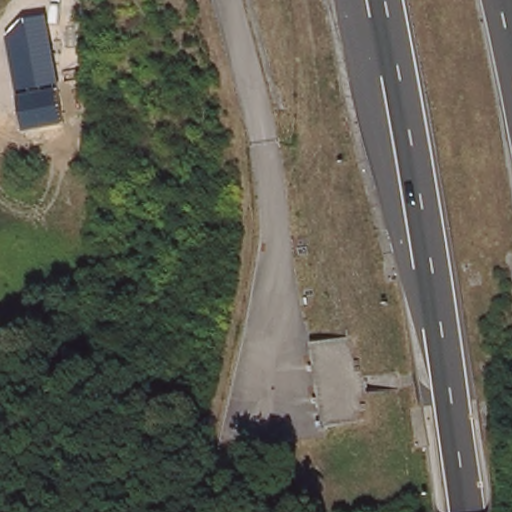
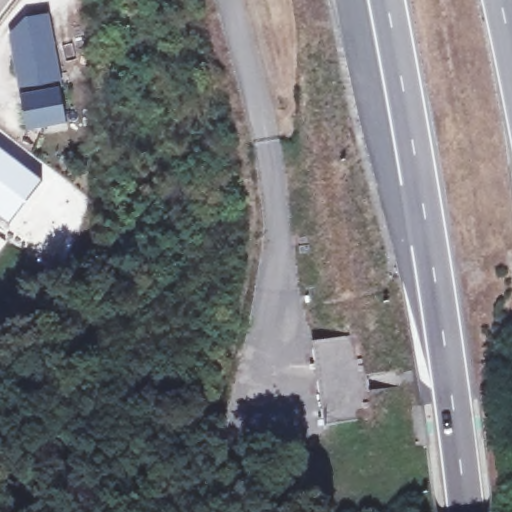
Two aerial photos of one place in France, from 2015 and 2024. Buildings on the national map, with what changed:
unchanged [(21,21),(47,18),(67,125),(25,133),(7,37),(21,21)]
new [(43,180),(8,224),(0,218),(0,147),(43,180)]
unchanged [(329,424),(317,339),(327,338),(354,334),(361,333),(362,339),(367,374),(373,417),(329,424)]

